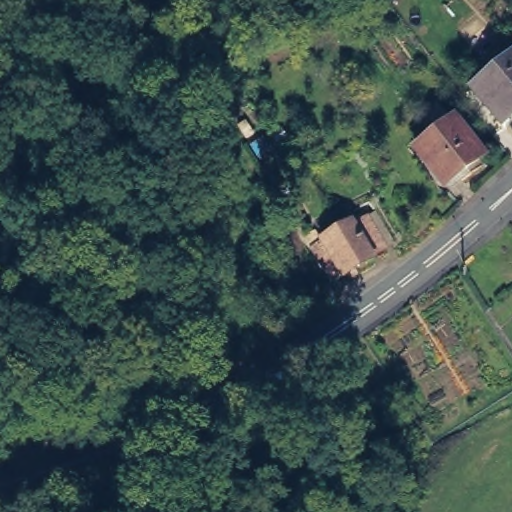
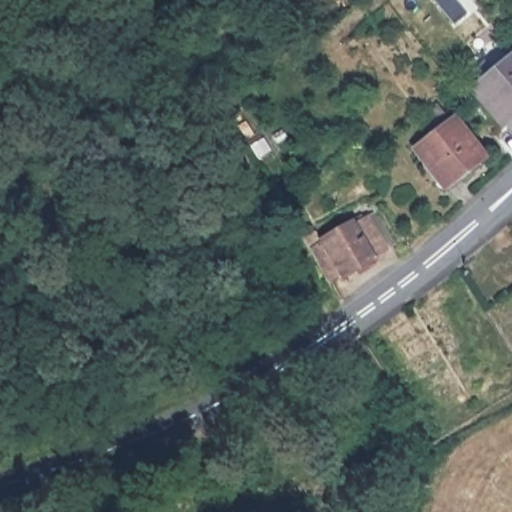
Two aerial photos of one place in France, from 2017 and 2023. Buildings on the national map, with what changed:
unchanged [(512,57),(512,58),(512,113),(501,122),(504,126),(502,128),(471,90),(512,57)]
unchanged [(418,149),(454,121),(482,157),(446,185),(418,149)]
unchanged [(316,251),(327,246),(326,241),(356,223),(359,226),(371,219),(391,254),(379,262),(379,264),(349,282),(346,279),(336,285),(316,251)]

